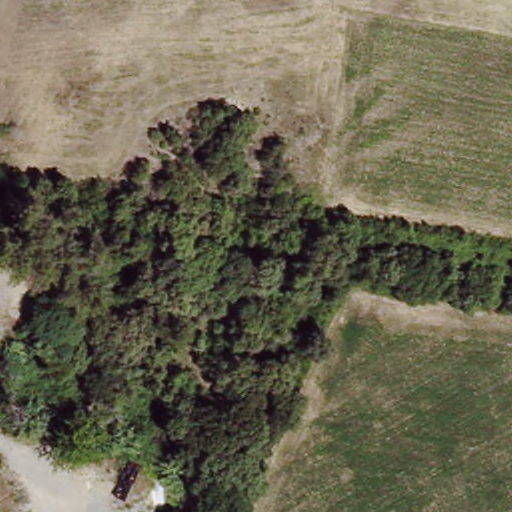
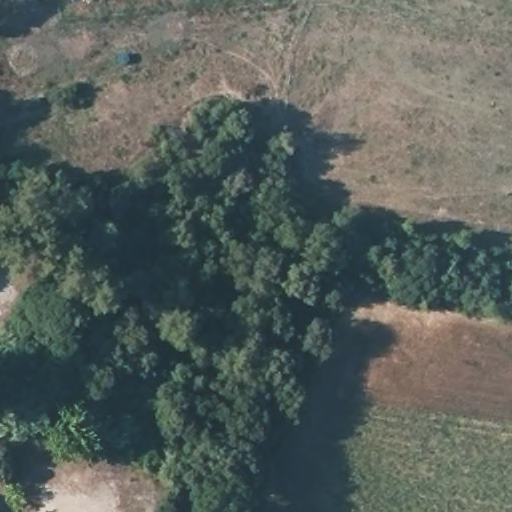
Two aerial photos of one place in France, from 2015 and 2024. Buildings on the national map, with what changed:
[]

